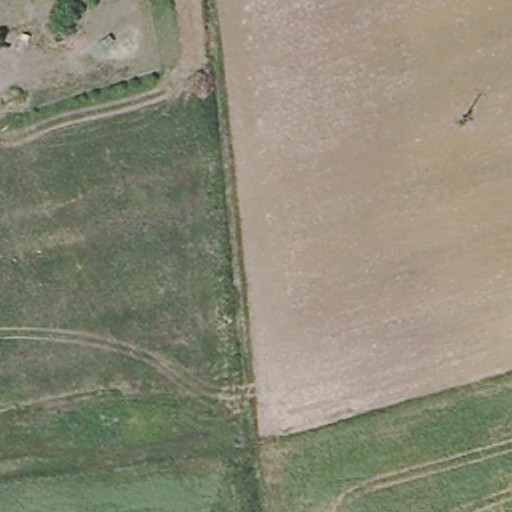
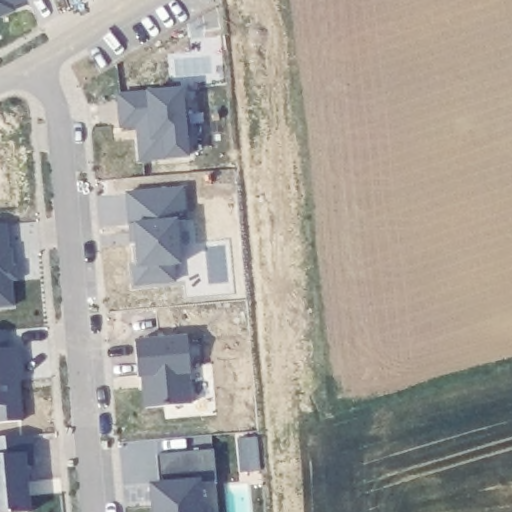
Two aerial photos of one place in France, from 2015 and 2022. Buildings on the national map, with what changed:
new [(20,0),(11,4),(13,11),(0,15),(0,0),(20,0)]
new [(137,127),(119,128),(117,95),(145,93),(183,90),(188,158),(166,159),(139,161),(137,127)]
new [(132,265),(136,265),(132,225),(127,225),(124,193),(184,188),(187,220),(176,221),(180,266),(173,267),(174,284),(134,287),(132,265)]
new [(11,266),(15,266),(17,280),(12,281),(14,304),(0,305),(0,224),(6,224),(11,266)]
new [(6,330),(7,349),(19,348),(20,367),(16,368),(21,422),(0,423),(0,330),(6,330)]
new [(141,377),(135,340),(187,337),(189,374),(191,403),(144,408),(141,377)]
new [(31,436),(34,466),(27,467),(29,512),(0,512),(0,438),(31,436)]
new [(152,452),(210,447),(213,479),(195,481),(197,512),(151,512),(150,504),(148,485),(155,484),(152,452)]

